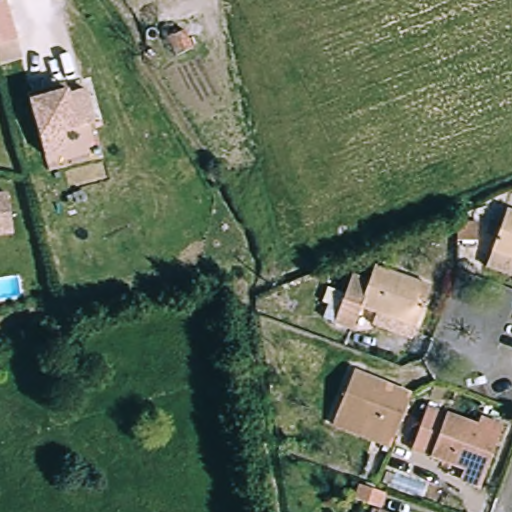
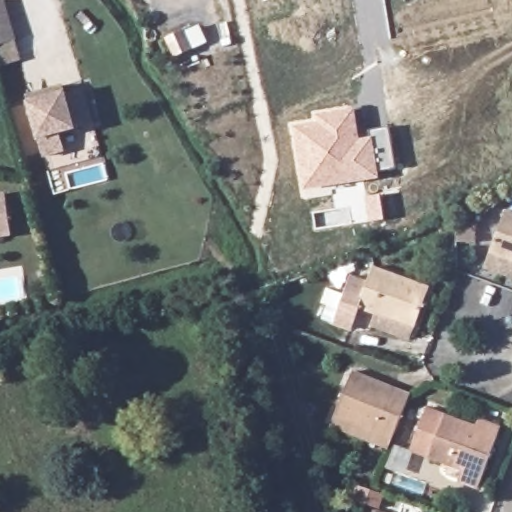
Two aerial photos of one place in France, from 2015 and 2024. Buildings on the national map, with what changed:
unchanged [(5,3),(16,43),(22,63),(0,69),(0,4),(5,3)]
unchanged [(190,46),(174,56),(165,39),(181,30),(190,46)]
unchanged [(67,92),(68,96),(86,90),(95,125),(62,134),(68,152),(47,158),(31,103),(67,92)]
new [(302,189),(293,125),(317,121),(316,114),(355,108),(360,139),(369,137),(368,131),(389,128),(396,168),(378,171),(379,178),(302,189)]
unchanged [(9,196),(15,235),(0,237),(0,197),(9,196)]
unchanged [(502,212),(512,216),(512,261),(487,252),(502,212)]
unchanged [(359,306),(352,325),(333,318),(349,274),(367,281),(372,265),(430,287),(416,324),(414,326),(359,306)]
unchanged [(346,376),(404,398),(387,444),(329,422),(346,376)]
unchanged [(498,437),(482,478),(412,450),(428,410),(498,437)]
unchanged [(350,511),(355,498),(379,507),(377,512),(353,512),(350,511)]

